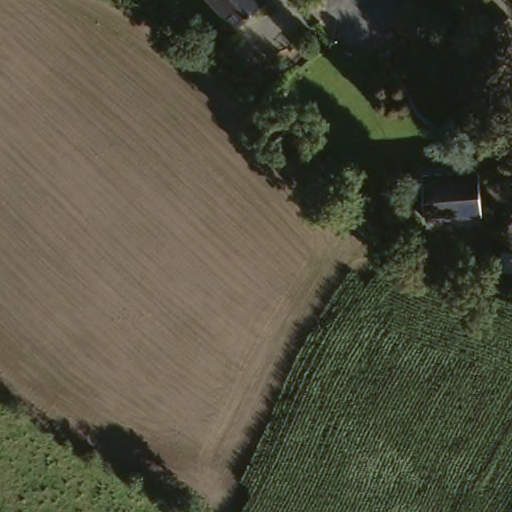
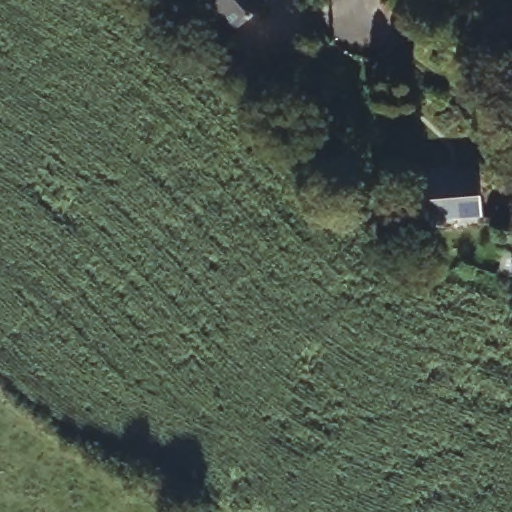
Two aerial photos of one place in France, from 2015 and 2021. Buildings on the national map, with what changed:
unchanged [(236,27),(210,0),(266,0),(236,27)]
unchanged [(414,174),(468,168),(473,215),(418,220),(414,174)]

